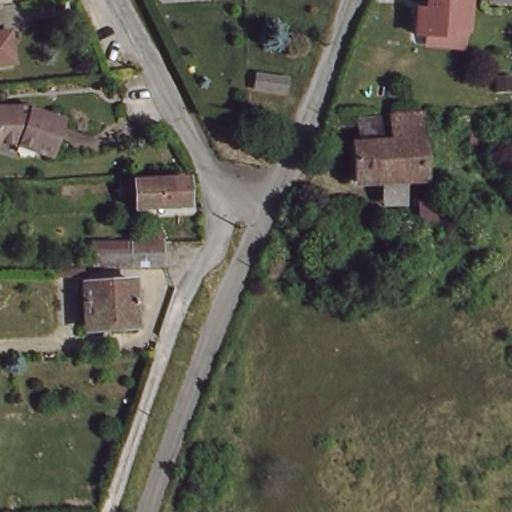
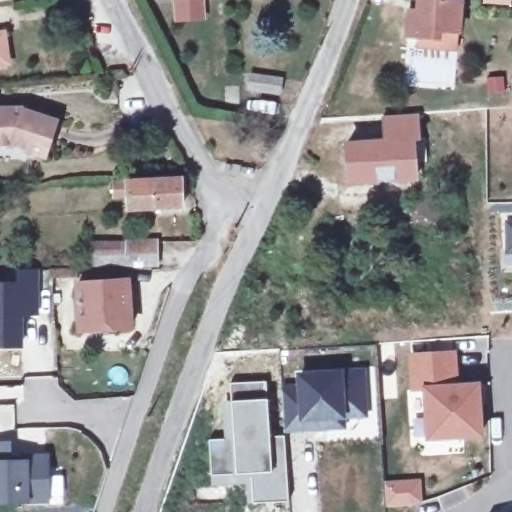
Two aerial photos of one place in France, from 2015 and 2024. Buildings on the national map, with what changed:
unchanged [(452,34),(447,45),(408,41),(413,31),(402,32),(408,0),(456,0),(452,34)]
unchanged [(7,66),(0,67),(0,33),(2,32),(7,66)]
unchanged [(281,94),(251,91),(252,75),(282,76),(281,94)]
unchanged [(22,110),(23,114),(52,124),(40,155),(19,147),(0,147),(0,110),(22,110)]
unchanged [(416,117),(418,145),(415,145),(355,149),(352,122),(416,117)]
unchanged [(377,205),(376,184),(347,185),(346,149),(355,149),(415,145),(415,181),(399,182),(400,205),(377,205)]
unchanged [(186,211),(133,215),(133,202),(118,202),(118,188),(186,185),(186,211)]
unchanged [(447,219),(416,221),(413,198),(446,197),(447,219)]
unchanged [(86,268),(86,245),(156,246),(156,269),(86,268)]
new [(16,281),(15,270),(38,270),(37,320),(20,321),(20,350),(0,350),(0,282),(16,281)]
unchanged [(130,329),(107,330),(107,325),(77,325),(76,285),(128,282),(130,329)]
new [(453,352),(455,385),(476,385),(480,434),(428,437),(425,388),(413,388),(411,355),(453,352)]
new [(300,388),(300,375),(362,371),(364,413),(342,415),(342,426),(285,429),(282,388),(300,388)]
new [(230,400),(228,381),(266,380),(268,397),(270,435),(285,434),(290,500),(251,502),(248,475),(210,478),(207,438),(223,438),(221,400),(230,400)]
new [(10,442),(11,456),(47,456),(48,500),(0,501),(0,443),(10,442)]

